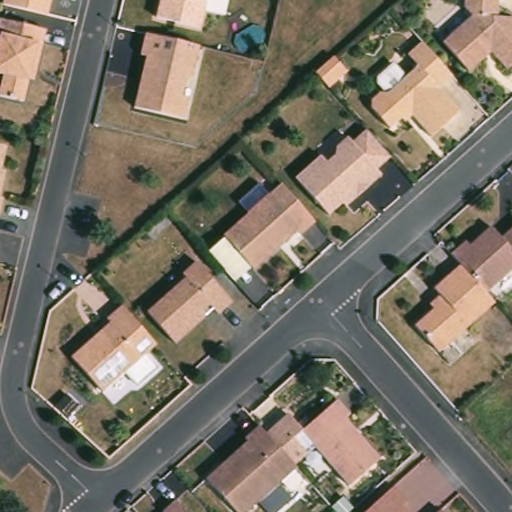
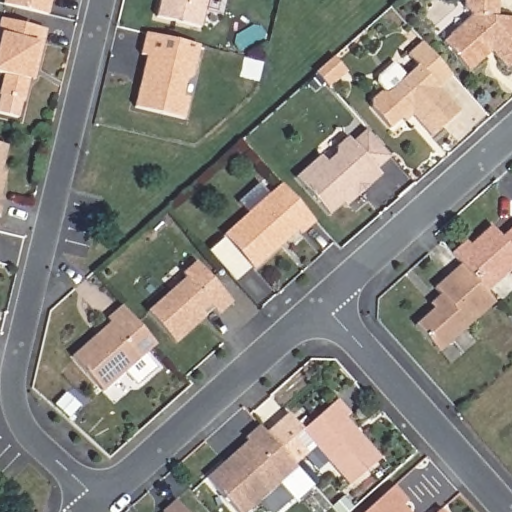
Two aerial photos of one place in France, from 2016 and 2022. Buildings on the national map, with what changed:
unchanged [(8,0),(52,0),(49,12),(6,4),(8,0)]
unchanged [(152,20),(157,0),(204,0),(196,31),(152,20)]
unchanged [(466,0),(503,0),(502,16),(512,17),(512,65),(511,65),(495,47),(470,70),(445,42),(473,17),(465,9),(466,0)]
unchanged [(21,103),(0,98),(0,86),(2,76),(0,75),(0,21),(44,32),(35,67),(32,82),(27,81),(21,103)]
unchanged [(193,74),(187,77),(183,92),(190,94),(185,116),(135,104),(148,52),(142,51),(147,30),(200,42),(193,74)]
unchanged [(378,94),(385,95),(418,66),(407,55),(420,43),(451,77),(438,89),(458,111),(430,137),(410,114),(390,132),(375,116),(374,98),(378,94)]
unchanged [(313,74),(331,58),(345,72),(327,89),(313,74)]
unchanged [(333,147),(346,136),(351,142),(365,130),(388,155),(374,168),(380,175),(346,205),(343,201),(329,214),(297,180),(320,158),(326,165),(339,154),(333,147)]
unchanged [(0,143),(6,145),(0,169),(0,143)]
unchanged [(0,189),(0,174),(2,179),(0,189)]
unchanged [(313,220),(298,232),(296,230),(252,268),(225,237),(283,186),(313,220)]
unchanged [(0,203),(0,197),(1,197),(0,203)]
unchanged [(481,295),(458,268),(453,262),(465,252),(468,256),(491,236),(500,245),(512,234),(512,267),(481,295)]
unchanged [(174,342),(146,311),(185,277),(182,273),(196,261),(231,302),(217,314),(213,308),(196,323),(174,342)]
unchanged [(437,358),(413,332),(442,305),(432,293),(458,268),(481,295),(492,307),(437,358)]
unchanged [(100,393),(69,359),(107,325),(104,321),(119,307),(153,346),(100,393)]
unchanged [(301,432),(336,399),(349,413),(345,417),(381,457),(351,485),(301,432)]
unchanged [(209,479),(250,442),(246,438),(260,426),(298,467),(249,512),(239,512),(209,479)]
unchanged [(391,486),(405,501),(400,506),(405,512),(362,512),(391,486)]
unchanged [(162,510),(175,497),(189,512),(165,512),(162,510)]
unchanged [(437,510),(440,512),(435,512),(437,510)]

